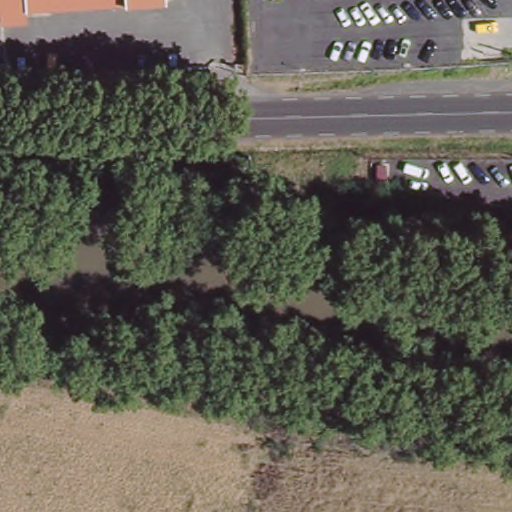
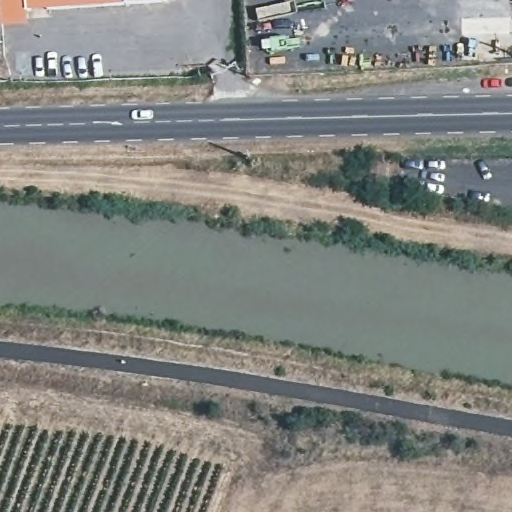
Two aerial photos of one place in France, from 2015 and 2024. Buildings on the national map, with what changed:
unchanged [(33,7),(33,13),(7,15),(7,10),(0,11),(0,0),(132,0),(33,7)]

